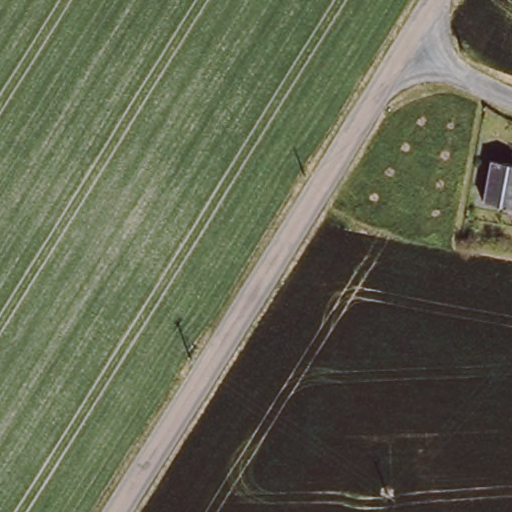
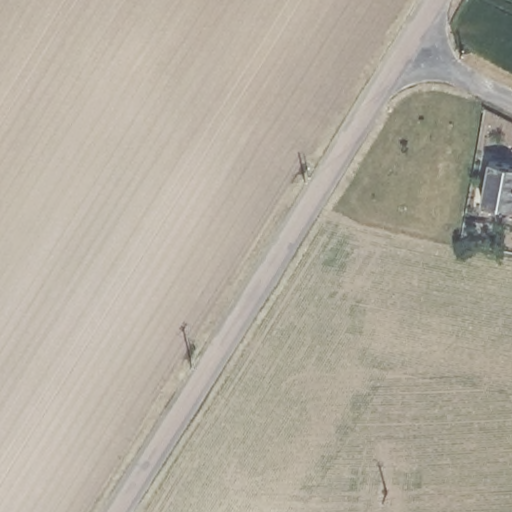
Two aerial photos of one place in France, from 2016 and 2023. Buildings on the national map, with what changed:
unchanged [(512,168),(512,212),(483,207),(490,164),(512,168)]

